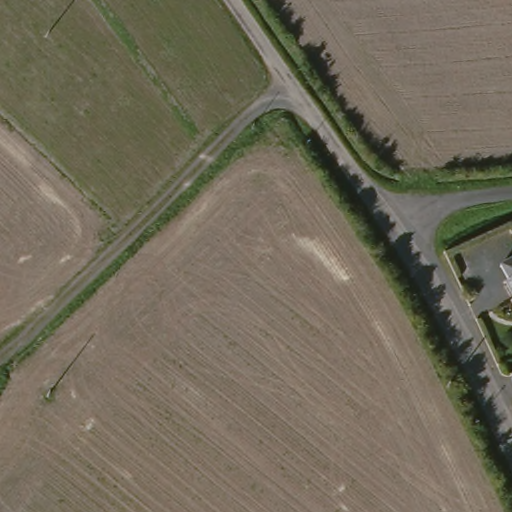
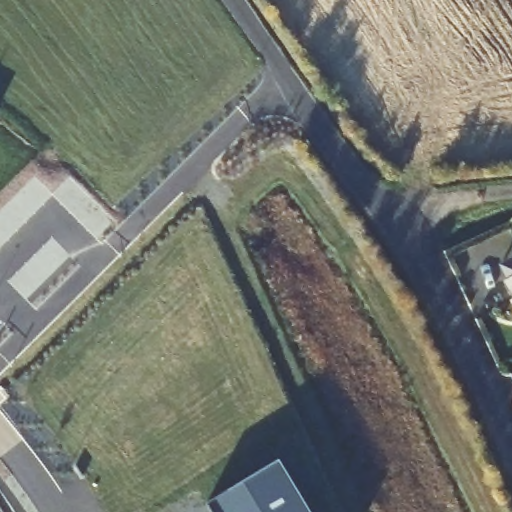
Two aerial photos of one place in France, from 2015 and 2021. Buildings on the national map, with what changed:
new [(279,460),(311,512),(195,512),(194,512),(279,460)]

